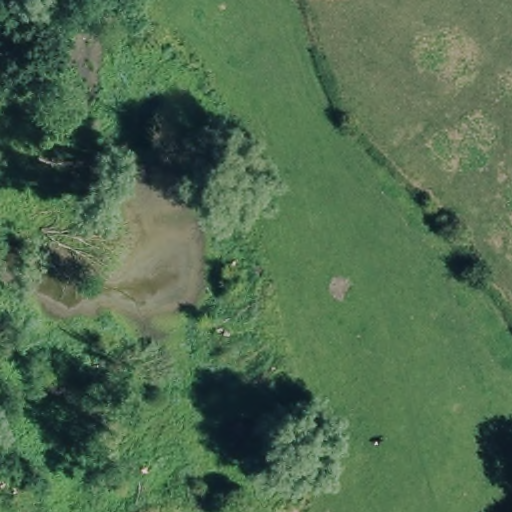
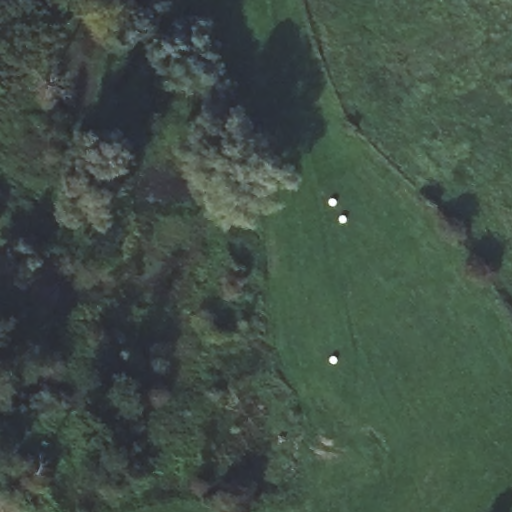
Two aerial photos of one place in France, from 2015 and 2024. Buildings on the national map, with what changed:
[]

